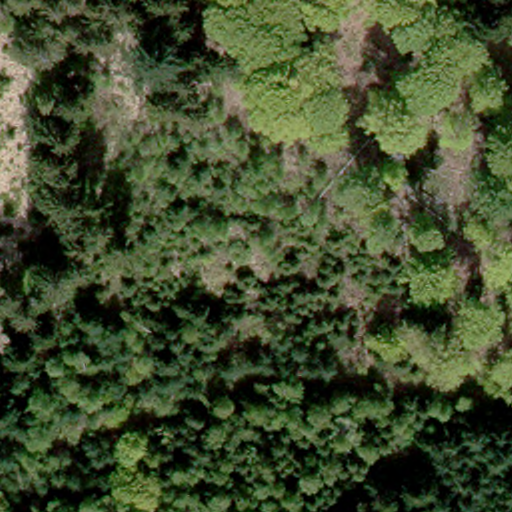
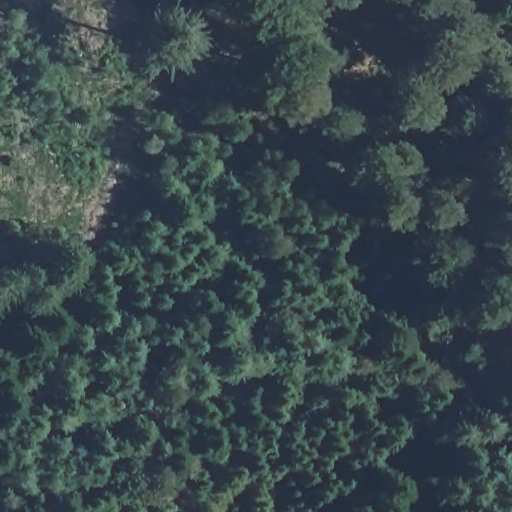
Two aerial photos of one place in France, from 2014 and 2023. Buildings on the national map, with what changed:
[]

